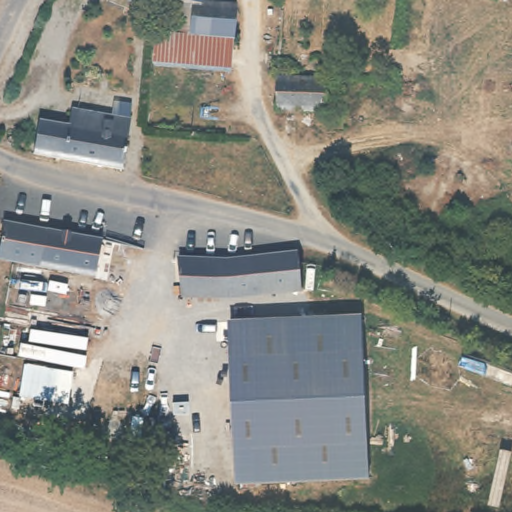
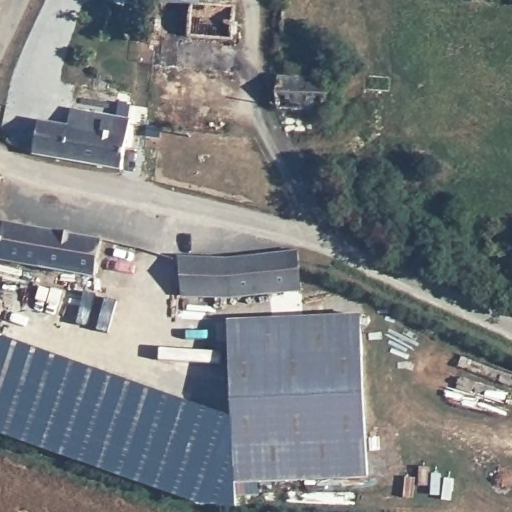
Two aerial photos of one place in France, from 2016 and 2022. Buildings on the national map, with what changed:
unchanged [(230,5),(229,45),(186,43),(186,8),(157,6),(157,0),(201,0),(200,4),(230,5)]
unchanged [(186,43),(229,45),(227,75),(154,70),(155,41),(186,43)]
unchanged [(323,79),(323,90),(332,91),(335,96),(334,104),(330,109),(323,111),(272,108),(275,74),(323,79)]
unchanged [(115,116),(116,105),(128,106),(117,173),(99,169),(72,164),(31,157),(36,121),(67,125),(70,109),(115,116)]
unchanged [(92,276),(12,263),(0,261),(0,225),(99,240),(92,276)]
unchanged [(294,254),(300,274),(302,290),(227,298),(225,262),(294,254)]
unchanged [(225,262),(227,298),(177,297),(183,259),(225,262)]
unchanged [(354,317),(360,316),(363,392),(367,475),(367,478),(311,481),(237,484),(235,432),(231,322),(322,318),(354,317)]
new [(237,484),(236,509),(200,507),(0,434),(0,337),(235,422),(235,432),(237,484)]

